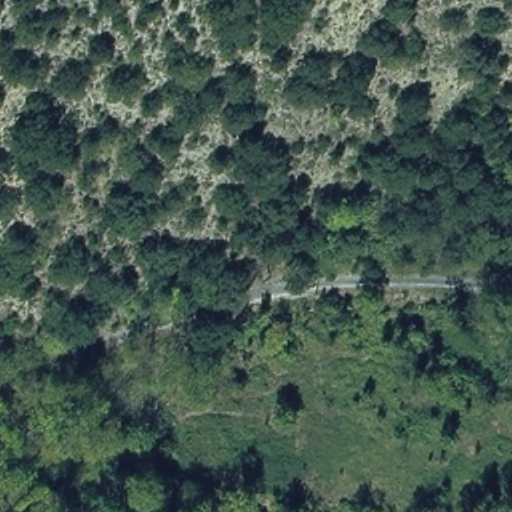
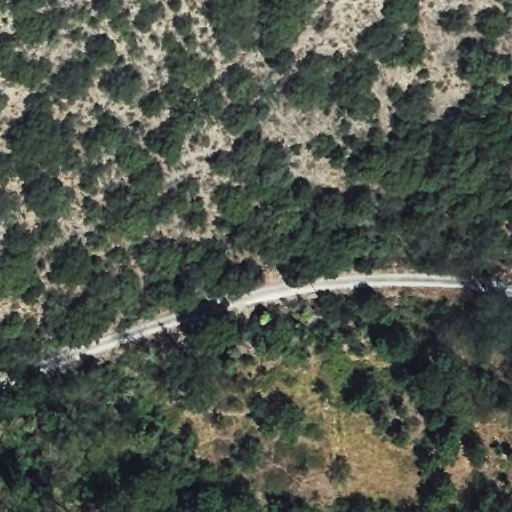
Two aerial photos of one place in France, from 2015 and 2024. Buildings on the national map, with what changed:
unchanged [(492,263),(512,264),(512,278),(492,278),(492,263)]

